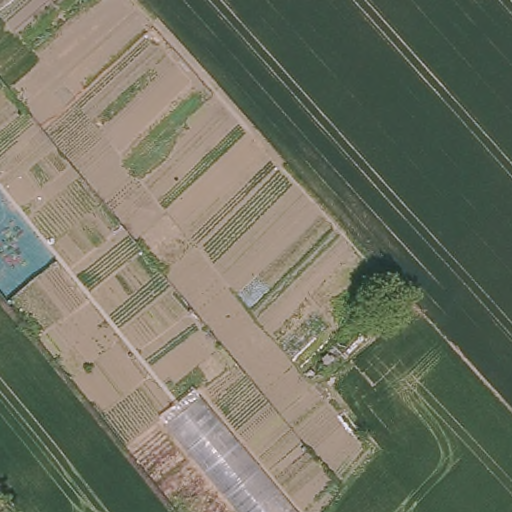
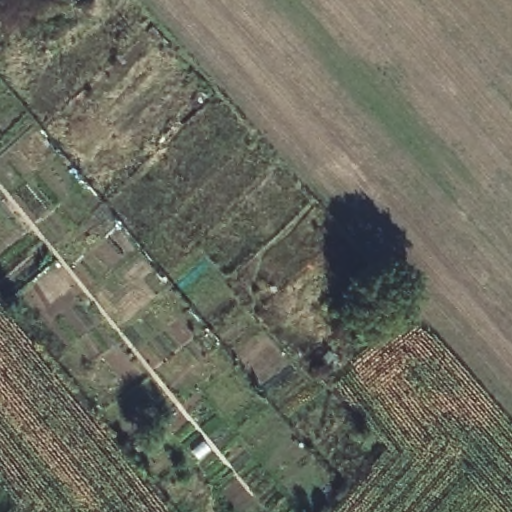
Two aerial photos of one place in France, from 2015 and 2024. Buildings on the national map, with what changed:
demolished [(200,395),(295,512),(240,512),(164,425),(200,395)]

